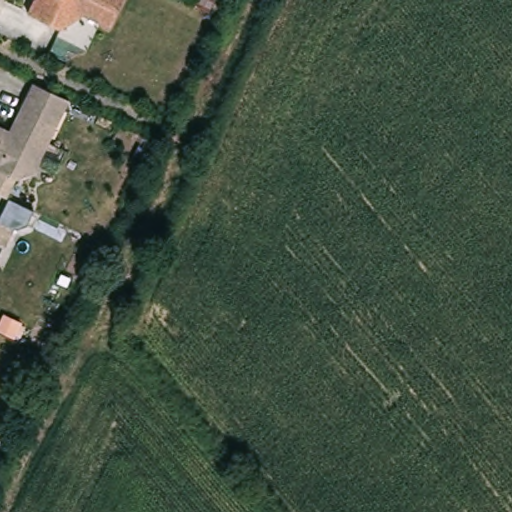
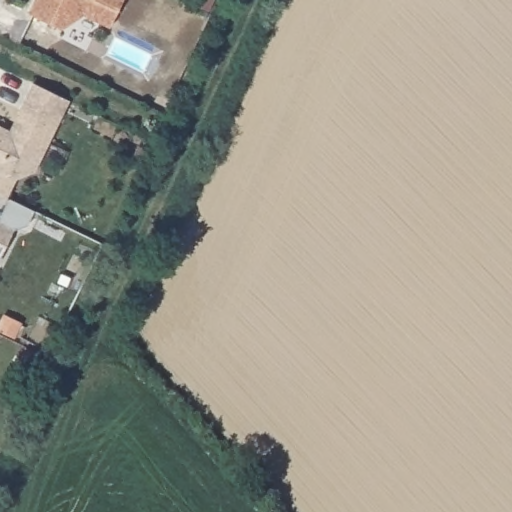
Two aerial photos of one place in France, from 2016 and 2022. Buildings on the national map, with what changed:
unchanged [(84,14),(62,29),(29,13),(35,0),(124,0),(111,27),(84,14)]
unchanged [(13,182),(0,176),(0,132),(6,135),(30,87),(65,104),(30,176),(13,182)]
unchanged [(2,257),(0,258),(0,218),(17,226),(2,257)]

